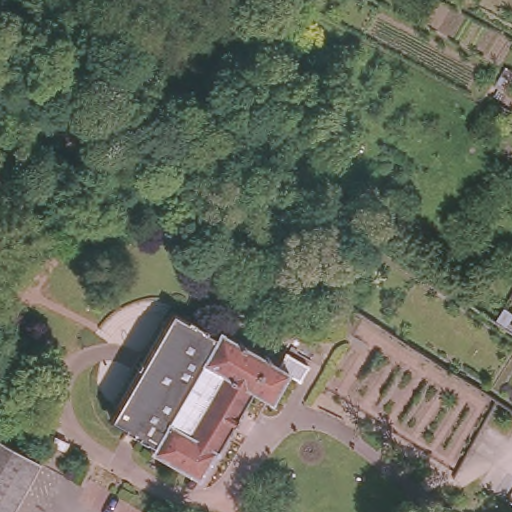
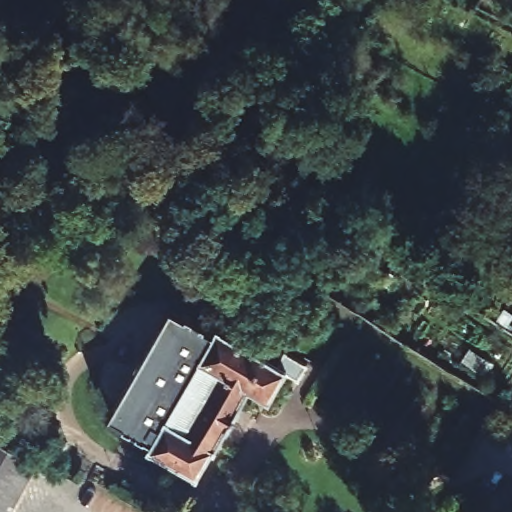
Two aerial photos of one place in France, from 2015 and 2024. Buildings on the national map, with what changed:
unchanged [(356,312),(344,330),(306,307),(318,287),(356,312)]
unchanged [(144,439),(144,441),(107,418),(171,308),(208,331),(218,337),(208,356),(206,355),(203,360),(206,362),(173,418),(169,417),(168,421),(168,422),(155,446),(153,445),(144,439)]
unchanged [(155,446),(168,422),(168,421),(169,417),(173,418),(206,362),(203,360),(206,355),(208,356),(218,337),(221,332),(218,332),(221,327),(227,330),(226,332),(267,355),(269,352),(284,360),(289,352),(311,364),(301,379),(290,372),(274,401),(253,388),(218,449),(216,448),(201,472),(204,473),(202,478),(197,476),(198,474),(157,451),(156,452),(151,448),(153,445),(155,446)]
unchanged [(38,463),(11,512),(0,512),(0,442),(38,463)]

